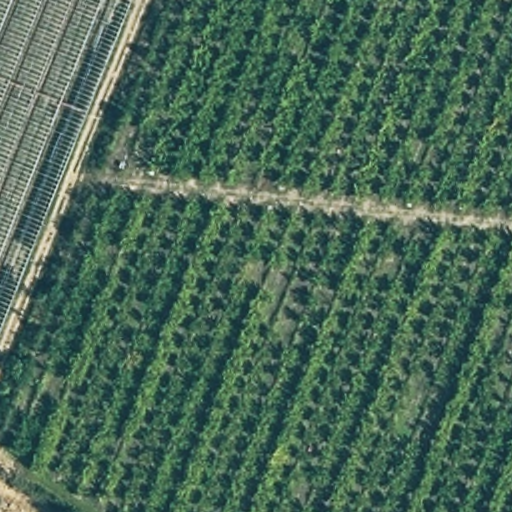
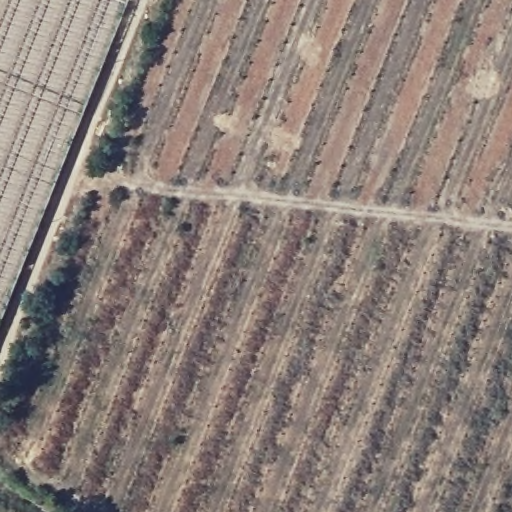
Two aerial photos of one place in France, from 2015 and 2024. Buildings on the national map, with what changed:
unchanged [(0,326),(0,0),(129,0),(0,326)]

